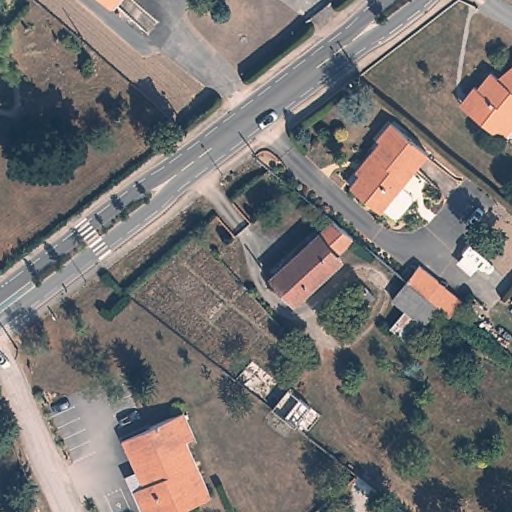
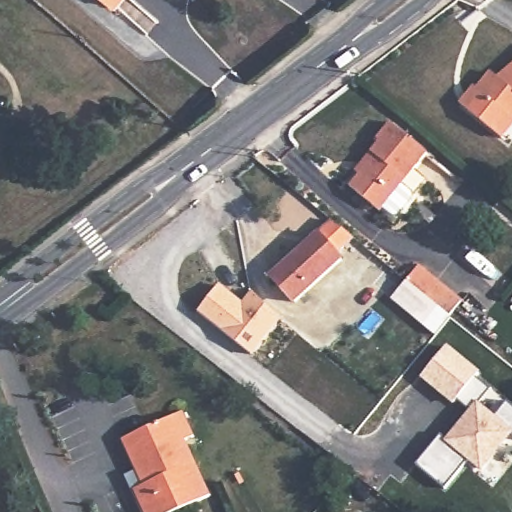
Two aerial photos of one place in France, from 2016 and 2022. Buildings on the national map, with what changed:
unchanged [(110,16),(92,0),(124,0),(110,16)]
unchanged [(468,120),(460,114),(467,106),(475,96),(477,99),(491,82),(498,88),(512,77),(512,135),(502,148),(490,139),(468,120)]
unchanged [(407,201),(394,218),(388,219),(377,210),(374,214),(344,190),(355,176),(352,174),(366,155),(375,144),(372,141),(385,125),(422,155),(396,187),(407,196),(407,201)]
unchanged [(353,248),(335,263),(341,270),(294,311),(271,286),(332,231),(353,248)]
unchanged [(404,310),(392,300),(407,282),(419,266),(437,281),(461,301),(449,316),(438,307),(423,325),(404,310)]
new [(218,283),(242,302),(251,291),(280,318),(253,355),(197,312),(218,283)]
unchanged [(512,299),(512,302),(510,301),(512,299)]
demolished [(328,308),(333,304),(338,310),(333,314),(328,308)]
new [(446,436),(468,411),(457,402),(454,405),(420,378),(447,345),(480,372),(477,376),(491,387),(479,402),(494,415),(506,401),(512,406),(512,435),(482,472),(466,460),(444,490),(413,465),(440,432),(446,436)]
demolished [(287,390),(297,397),(309,406),(294,426),(272,409),(287,390)]
unchanged [(182,416),(194,441),(185,445),(210,501),(186,512),(142,512),(139,506),(134,495),(143,490),(122,445),(182,416)]

